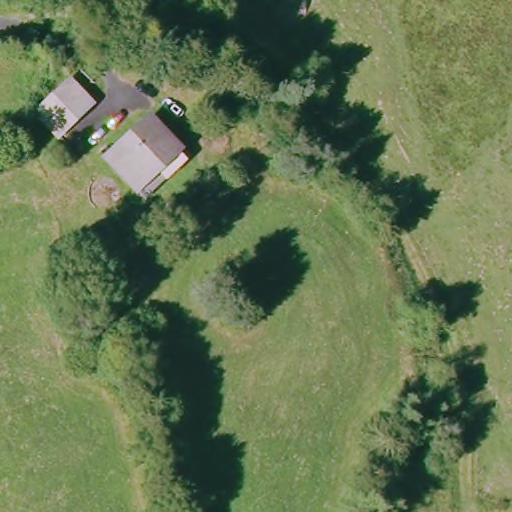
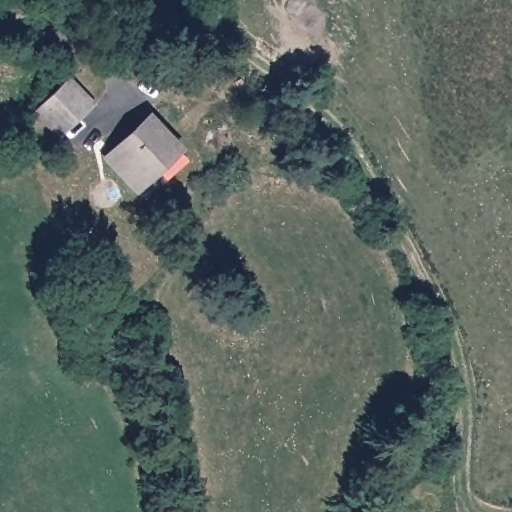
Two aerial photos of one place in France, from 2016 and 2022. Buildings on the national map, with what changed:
unchanged [(89,106),(55,135),(36,113),(70,85),(89,106)]
unchanged [(131,181),(108,150),(145,118),(170,151),(131,181)]
unchanged [(180,165),(135,199),(103,155),(108,150),(131,181),(170,151),(180,165)]

